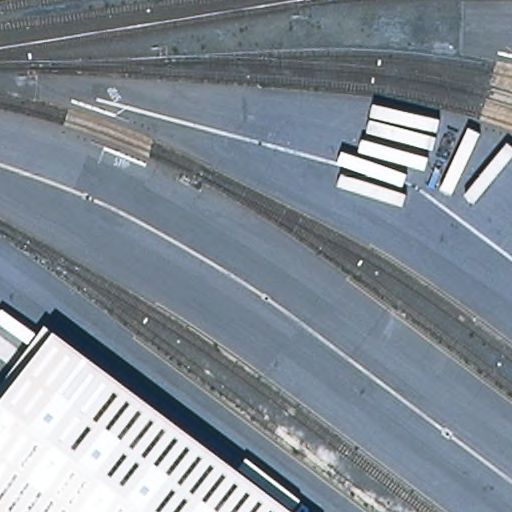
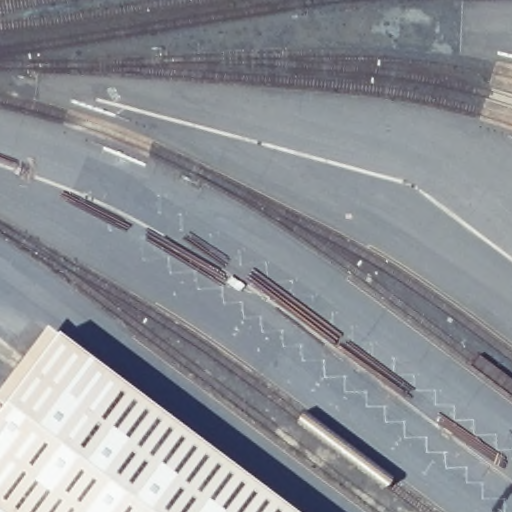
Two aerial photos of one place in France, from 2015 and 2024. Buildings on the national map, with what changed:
unchanged [(54,336),(291,512),(0,512),(0,409),(54,336)]

